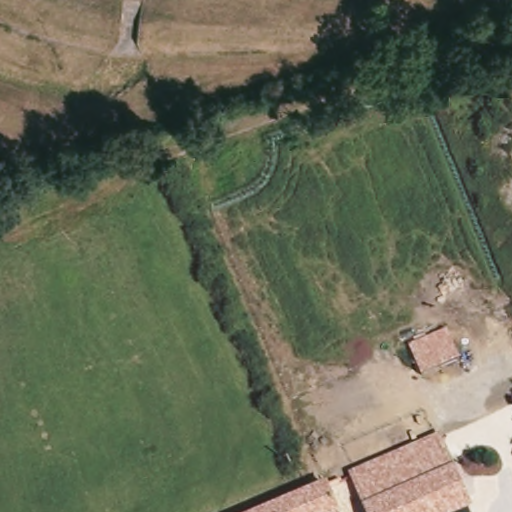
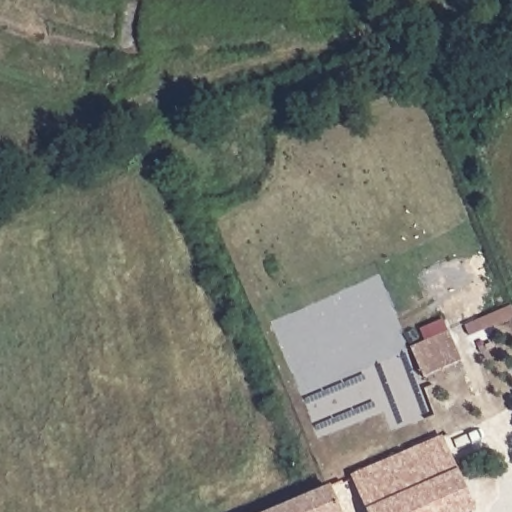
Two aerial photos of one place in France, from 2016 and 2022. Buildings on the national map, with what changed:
unchanged [(448,332),(461,362),(422,380),(410,347),(448,332)]
unchanged [(354,468),(402,446),(446,426),(458,453),(475,502),(466,507),(468,512),(373,512),(354,468)]
unchanged [(321,487),(332,482),(343,512),(262,512),(312,491),(321,487)]

